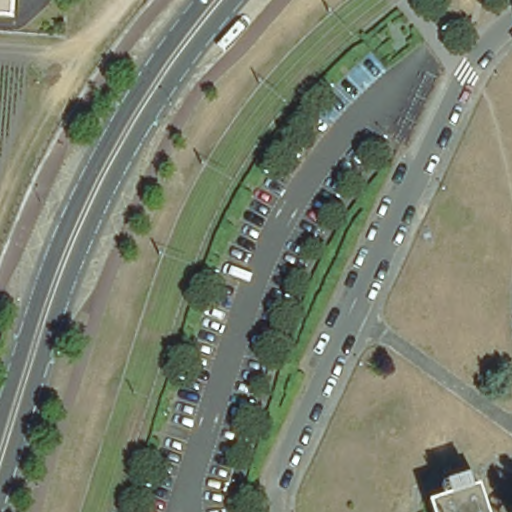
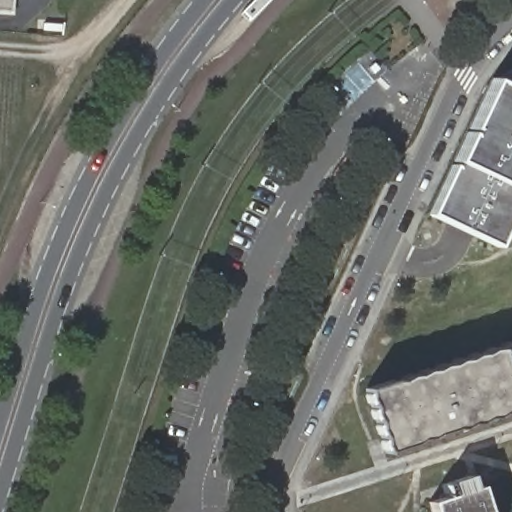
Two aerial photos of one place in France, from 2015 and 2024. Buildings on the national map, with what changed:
unchanged [(0,11),(0,0),(15,0),(15,11),(0,11)]
new [(427,213),(453,161),(468,130),(465,129),(488,80),(512,71),(512,211),(496,246),(427,213)]
new [(365,389),(497,347),(512,343),(512,410),(385,452),(365,389)]
unchanged [(424,503),(444,496),(440,485),(469,477),(472,487),(477,486),(486,512),(427,512),(424,503)]

